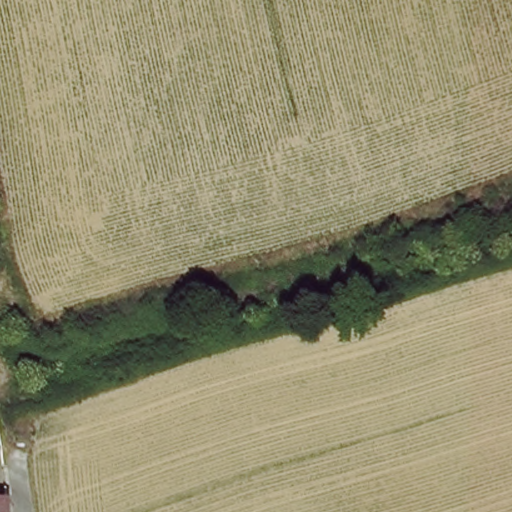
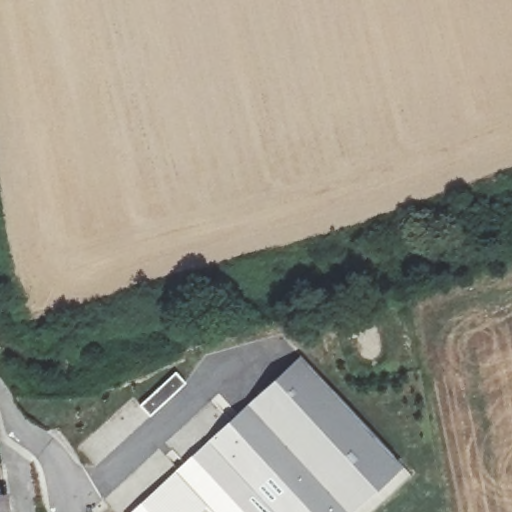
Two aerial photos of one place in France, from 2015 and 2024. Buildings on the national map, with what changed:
new [(405,470),(360,512),(209,512),(209,511),(208,512),(136,512),(304,358),(405,470)]
unchanged [(0,512),(0,497),(6,512),(0,512)]

